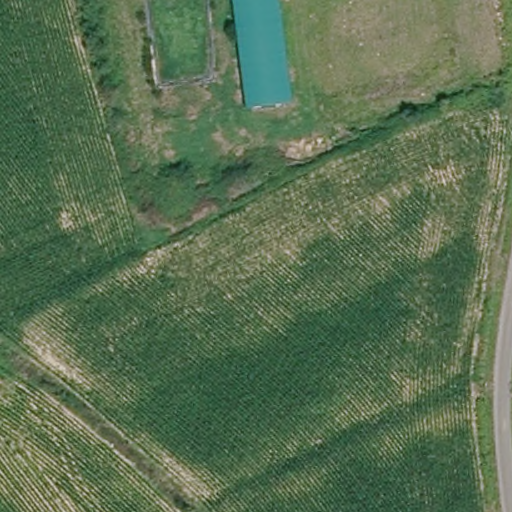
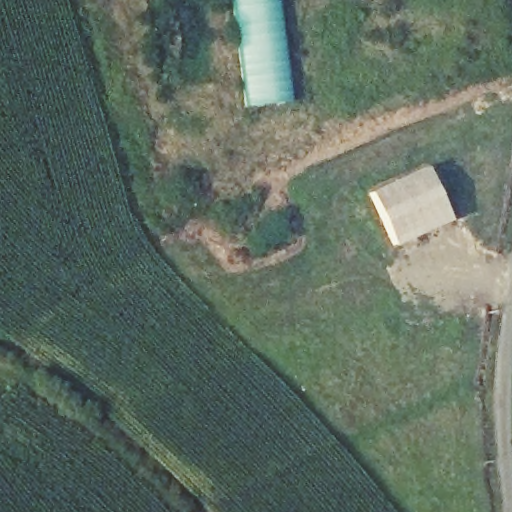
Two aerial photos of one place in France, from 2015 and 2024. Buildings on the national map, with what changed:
unchanged [(233,0),(280,0),(294,102),(247,108),(233,0)]
new [(369,192),(425,167),(449,220),(393,245),(369,192)]

